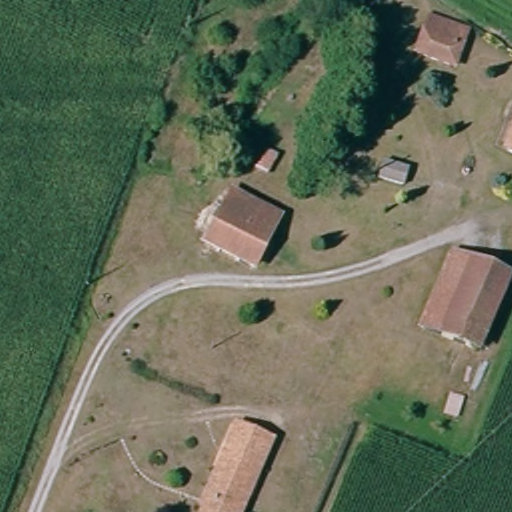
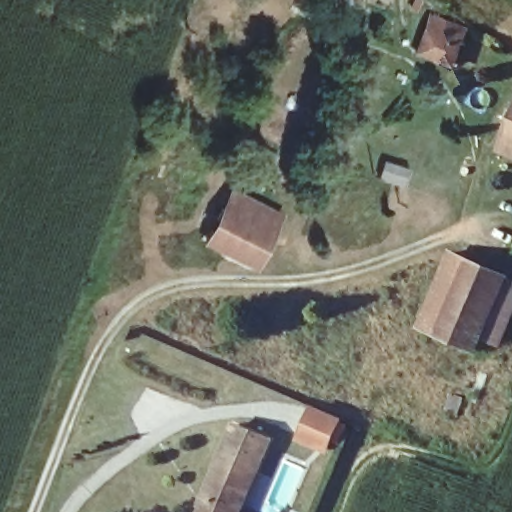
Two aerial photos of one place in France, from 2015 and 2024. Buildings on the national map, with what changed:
unchanged [(465,27),(462,34),(468,36),(456,66),(418,51),(433,15),(465,27)]
unchanged [(508,157),(512,148),(512,158),(508,157)]
unchanged [(236,194),(283,221),(255,270),(214,245),(208,242),(236,194)]
unchanged [(445,335),(421,325),(455,252),(477,262),(445,335)]
unchanged [(480,351),(445,335),(477,262),(510,277),(512,277),(512,278),(510,281),(481,347),(480,351)]
unchanged [(499,354),(481,347),(510,281),(512,281),(512,324),(499,354)]
new [(309,407),(337,420),(325,450),(296,437),(309,407)]
unchanged [(247,472),(235,507),(238,512),(206,512),(219,473),(214,472),(222,445),(230,447),(236,427),(272,439),(261,470),(247,472)]

